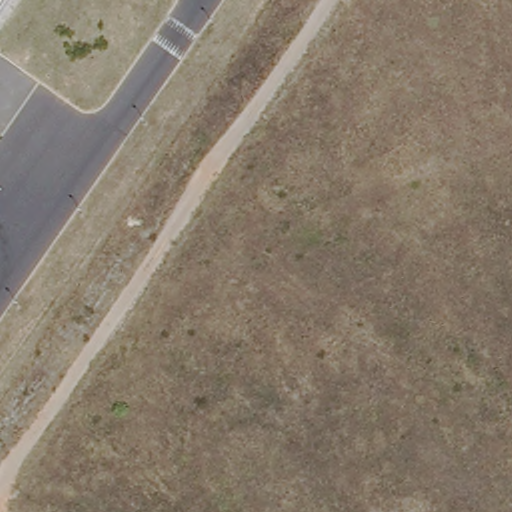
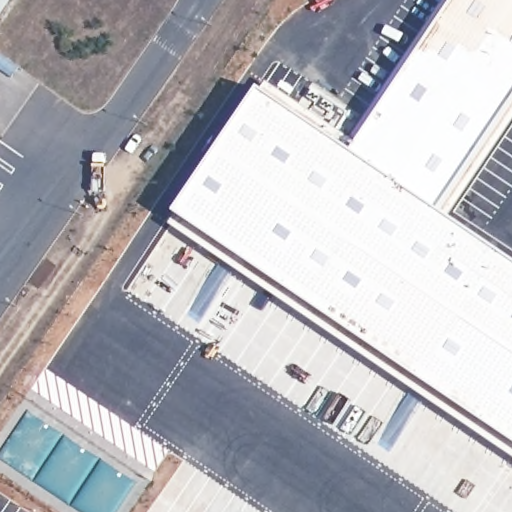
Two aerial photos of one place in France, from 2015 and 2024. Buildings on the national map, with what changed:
unchanged [(10,0),(0,15),(0,0),(10,0)]
new [(176,214),(261,89),(354,152),(456,0),(512,0),(512,109),(442,212),(512,260),(512,457),(172,226),(176,214)]

